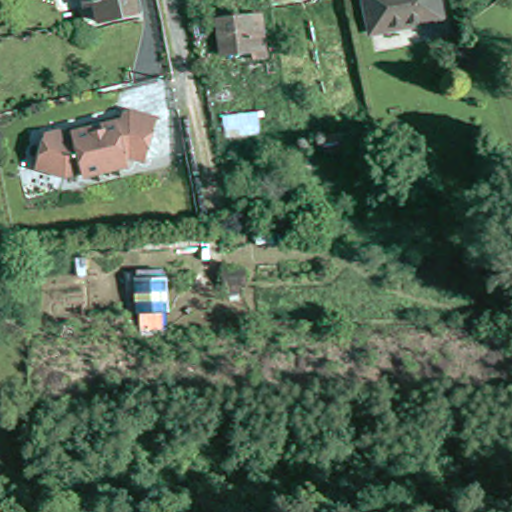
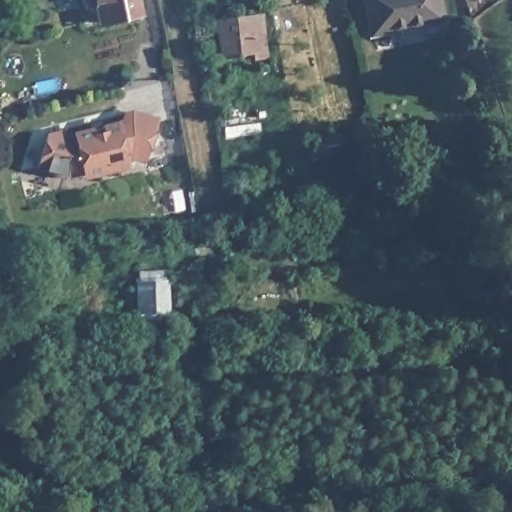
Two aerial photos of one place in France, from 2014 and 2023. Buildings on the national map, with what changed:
unchanged [(102,17),(93,19),(89,0),(138,0),(142,19),(106,27),(102,17)]
unchanged [(326,1),(304,5),(303,0),(326,0),(326,1)]
unchanged [(368,0),(439,0),(443,19),(375,32),(368,0)]
unchanged [(266,62),(255,63),(253,55),(224,59),(218,22),(260,17),(266,62)]
unchanged [(77,129),(122,120),(125,104),(162,110),(147,162),(129,159),(132,172),(82,183),(81,175),(36,169),(46,126),(77,129)]
unchanged [(277,215),(279,227),(259,229),(257,217),(277,215)]
unchanged [(252,278),(254,288),(236,290),(235,280),(252,278)]

